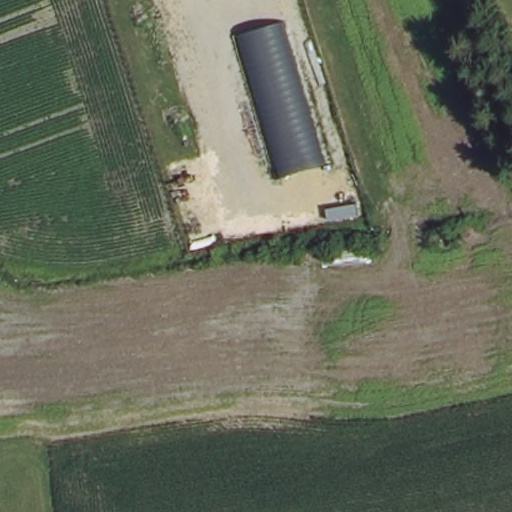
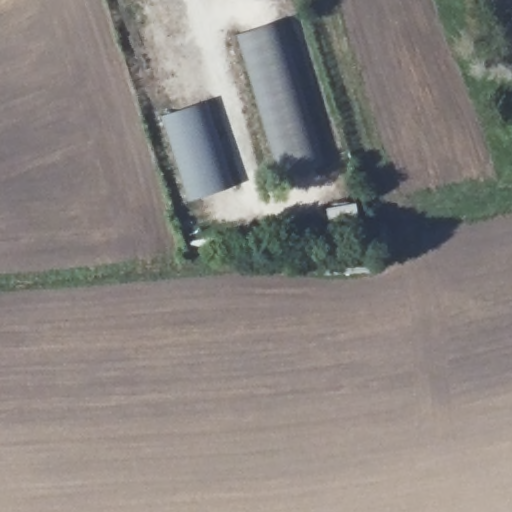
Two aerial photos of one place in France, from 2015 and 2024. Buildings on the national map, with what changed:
unchanged [(284,20),(327,165),(281,177),(240,34),(284,20)]
new [(208,102),(234,186),(189,202),(162,118),(208,102)]

